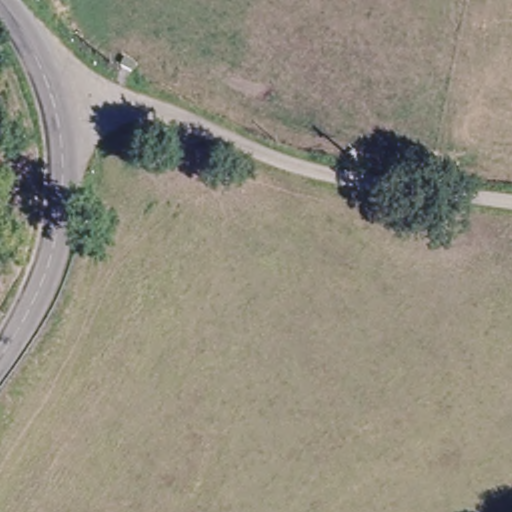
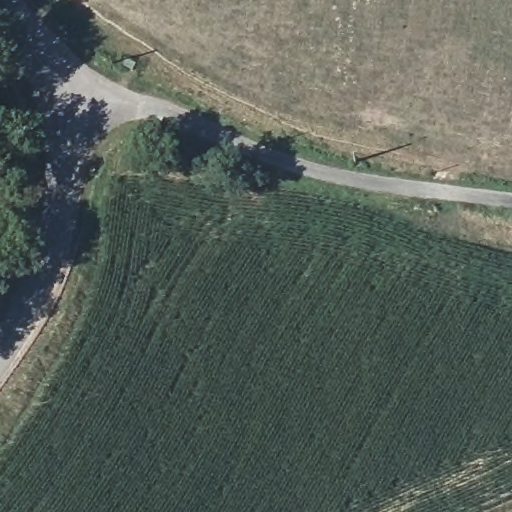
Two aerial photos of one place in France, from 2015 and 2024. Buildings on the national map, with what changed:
[]

